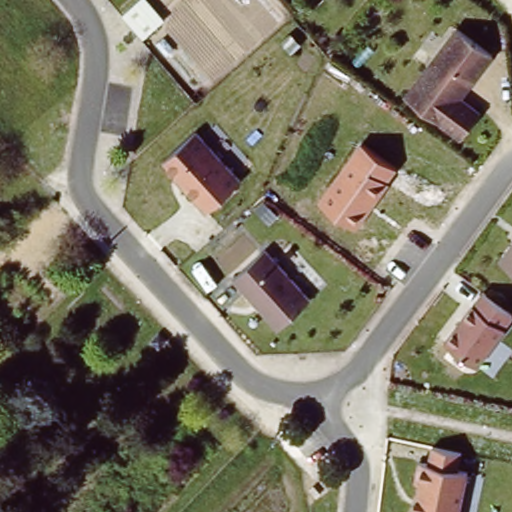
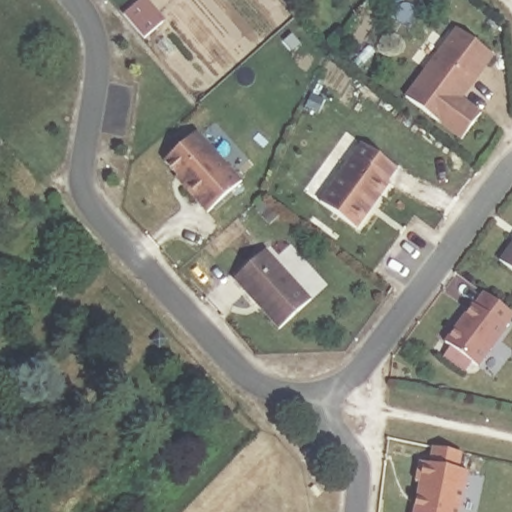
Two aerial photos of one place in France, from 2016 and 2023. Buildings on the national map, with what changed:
unchanged [(148,30),(130,9),(141,0),(157,0),(167,14),(171,18),(151,34),(148,30)]
unchanged [(480,112),(460,139),(403,96),(455,28),(493,56),(462,98),(480,112)]
unchanged [(242,172),(211,202),(172,154),(202,127),(242,172)]
unchanged [(397,169),(356,228),(320,203),(360,143),(397,169)]
unchanged [(512,241),(512,270),(498,260),(512,241)]
unchanged [(310,299),(277,329),(233,279),(266,247),(310,299)]
unchanged [(512,315),(512,319),(505,330),(477,368),(443,342),(470,304),(480,292),(512,315)]
unchanged [(155,330),(162,339),(155,345),(147,337),(155,330)]
unchanged [(461,453),(459,470),(468,472),(459,512),(412,512),(418,483),(413,482),(418,462),(428,463),(430,447),(461,453)]

